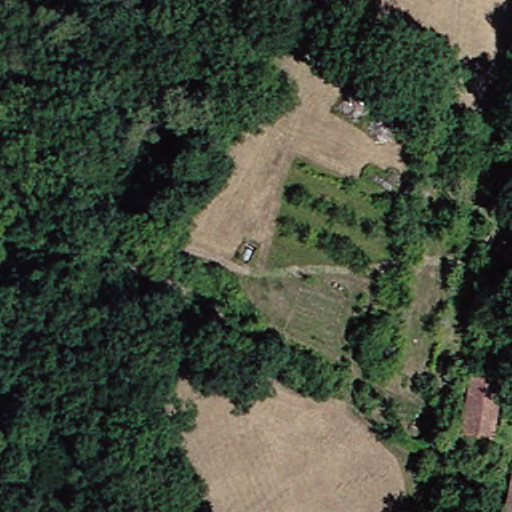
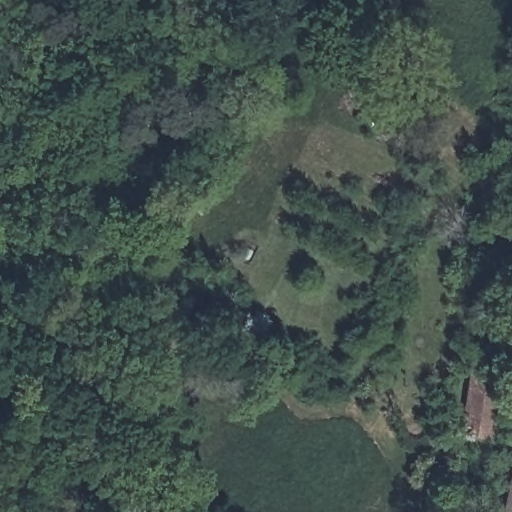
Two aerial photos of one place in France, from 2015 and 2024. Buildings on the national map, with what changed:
unchanged [(495,381),(481,439),(455,431),(469,372),(495,381)]
unchanged [(510,453),(512,453),(512,512),(499,512),(510,453)]

